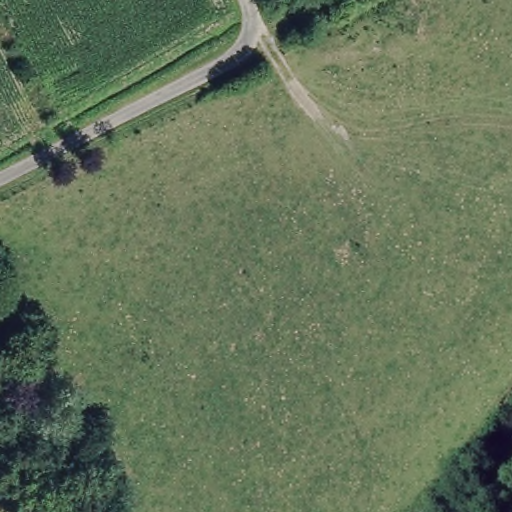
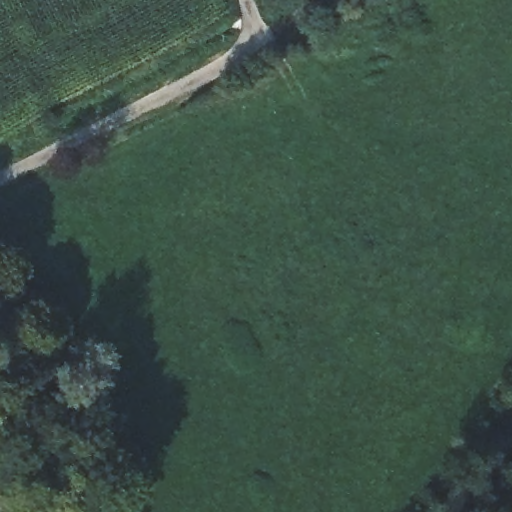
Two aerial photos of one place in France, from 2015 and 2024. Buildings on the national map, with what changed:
[]

